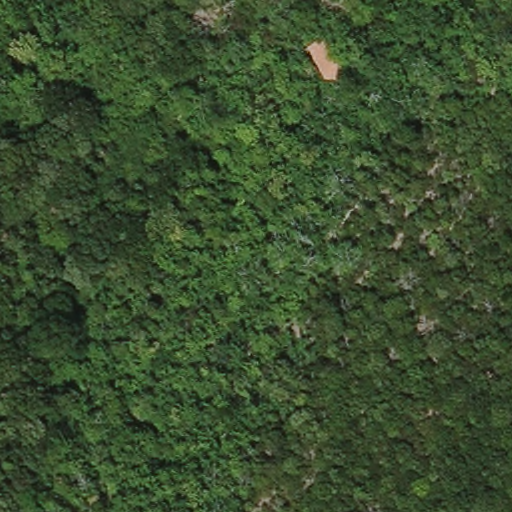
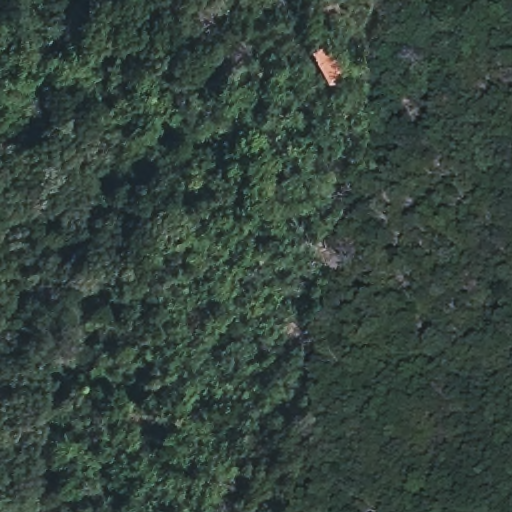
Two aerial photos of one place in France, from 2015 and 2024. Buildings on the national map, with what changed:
unchanged [(345,75),(322,71),(325,52),(349,56),(345,75)]

